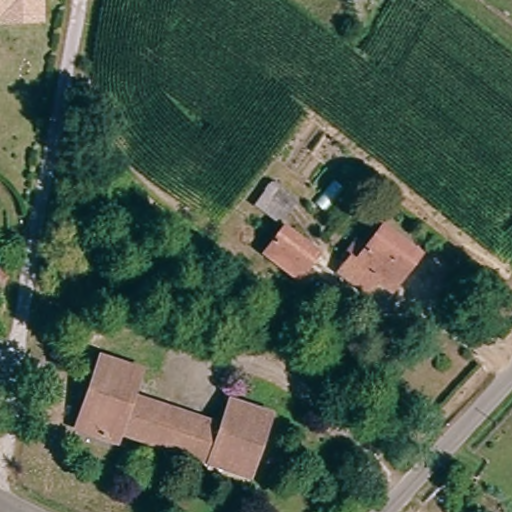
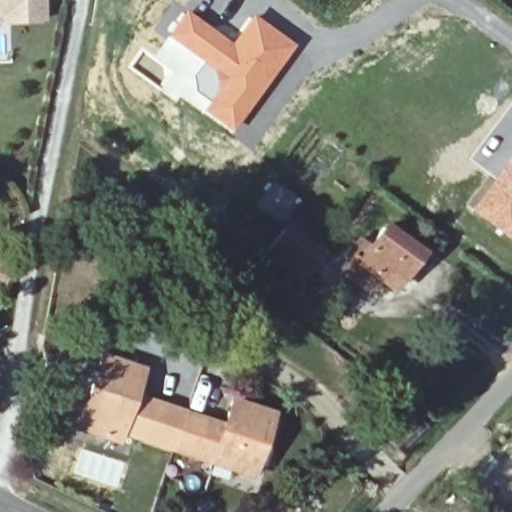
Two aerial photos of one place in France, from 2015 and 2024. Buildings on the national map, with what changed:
unchanged [(31,18),(12,19),(11,11),(0,12),(0,0),(48,0),(50,16),(31,18)]
new [(184,9),(230,43),(252,14),(295,44),(252,104),(229,132),(200,110),(206,102),(194,93),(192,75),(191,74),(198,64),(163,37),(184,9)]
unchanged [(340,154),(326,169),(311,156),(325,140),(340,154)]
new [(468,209),(512,153),(512,244),(468,209)]
unchanged [(292,200),(277,222),(254,205),(269,184),(292,200)]
unchanged [(332,205),(315,225),(301,213),(318,193),(332,205)]
unchanged [(420,248),(393,283),(379,273),(370,285),(344,267),(353,252),(350,250),(359,235),(370,242),(386,224),(420,248)]
unchanged [(313,253),(294,277),(265,254),(283,230),(313,253)]
unchanged [(139,376),(132,403),(183,419),(220,432),(229,407),(267,419),(248,480),(227,474),(230,466),(201,455),(197,462),(172,454),(147,447),(149,437),(121,429),(115,444),(97,440),(101,429),(81,423),(100,364),(139,376)]

